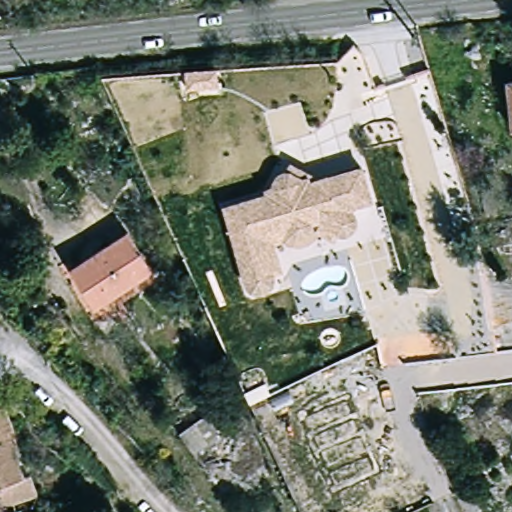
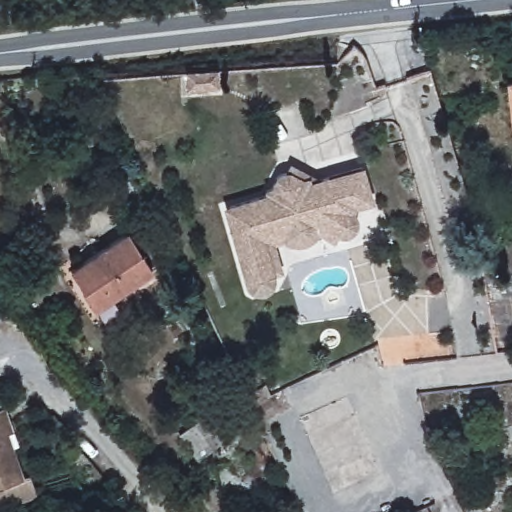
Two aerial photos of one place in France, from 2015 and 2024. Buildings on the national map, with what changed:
unchanged [(512,78),(512,127),(511,127),(507,79),(512,78)]
unchanged [(271,275),(271,276),(271,278),(271,281),(270,282),(269,284),(268,286),(266,288),(264,290),(262,291),(260,291),(258,292),(256,292),(254,291),(252,290),(249,289),(247,287),(245,285),(244,282),(227,227),(232,225),(226,206),(264,194),(263,190),(268,188),(275,177),(275,176),(277,174),(278,173),(278,172),(279,172),(280,171),(282,171),(283,171),(285,171),(287,171),(288,172),(289,174),(300,183),(305,181),(306,186),(359,170),(369,203),(351,208),(345,212),(354,228),(355,230),(355,232),(355,233),(355,234),(355,236),(355,238),(354,240),(353,241),(352,243),(351,244),(349,245),(347,246),(345,247),(343,247),(340,247),(338,246),(336,245),(333,242),(332,240),(320,218),(259,236),(271,274),(271,275)]
unchanged [(316,229),(316,230),(316,231),(315,232),(314,234),(313,235),(311,236),(310,237),(308,238),(306,239),(303,240),(301,241),(299,242),(296,242),(294,242),(292,243),(290,243),(288,243),(287,243),(285,242),(283,242),(282,241),(281,239),(270,242),(279,271),(271,274),(259,236),(320,218),(332,240),(324,244),(316,229)]
unchanged [(122,230),(148,267),(93,304),(67,266),(122,230)]
unchanged [(2,406),(8,424),(3,427),(21,479),(31,476),(38,497),(14,505),(0,509),(0,406),(2,406)]
unchanged [(206,414),(225,442),(197,459),(178,433),(206,414)]

